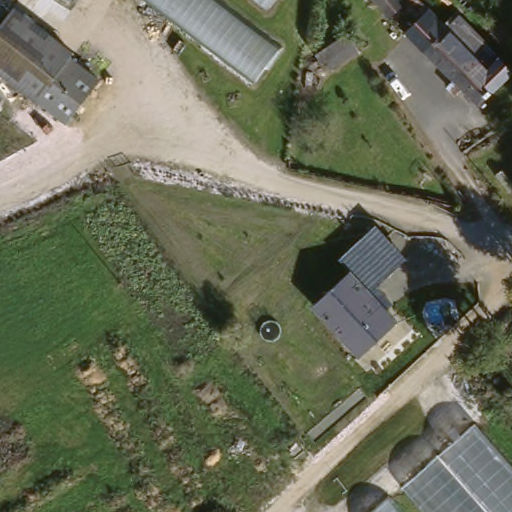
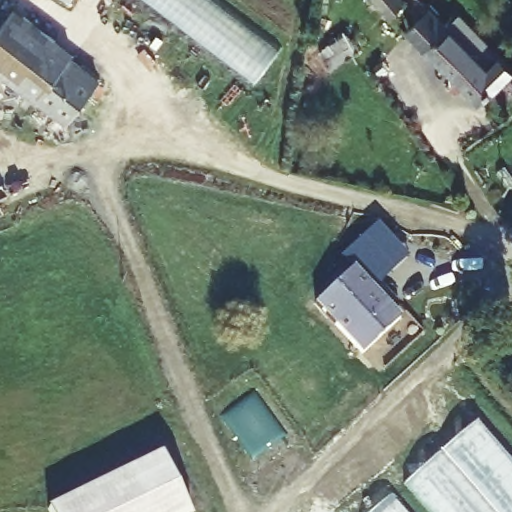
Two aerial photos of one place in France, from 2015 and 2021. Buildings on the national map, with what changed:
unchanged [(221,0),(283,46),(257,81),(145,0),(221,0)]
unchanged [(261,0),(284,0),(276,11),(261,0)]
unchanged [(481,103),(428,50),(431,45),(412,26),(419,18),(407,4),(394,14),(380,0),(427,0),(503,81),(481,103)]
unchanged [(39,96),(36,98),(0,68),(0,23),(15,5),(72,49),(71,56),(99,78),(97,83),(67,119),(39,96)]
unchanged [(320,51),(346,35),(354,50),(329,66),(320,51)]
unchanged [(339,257),(377,222),(409,258),(373,293),(352,272),(339,257)]
unchanged [(352,272),(398,319),(364,353),(316,306),(352,272)]
unchanged [(512,467),(512,512),(436,512),(408,480),(474,423),(512,467)]
new [(159,456),(186,512),(47,512),(46,510),(159,456)]
unchanged [(389,496),(404,512),(371,512),(389,496)]

